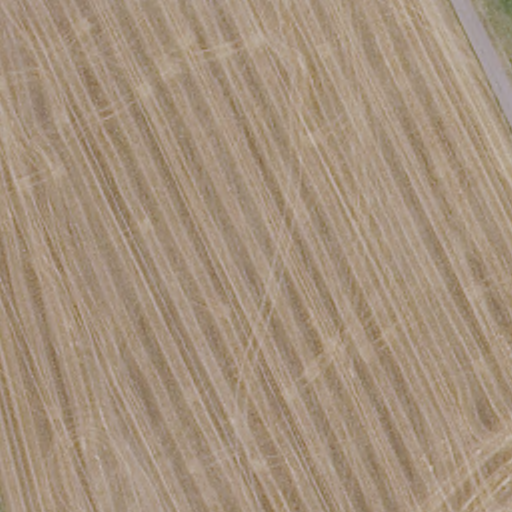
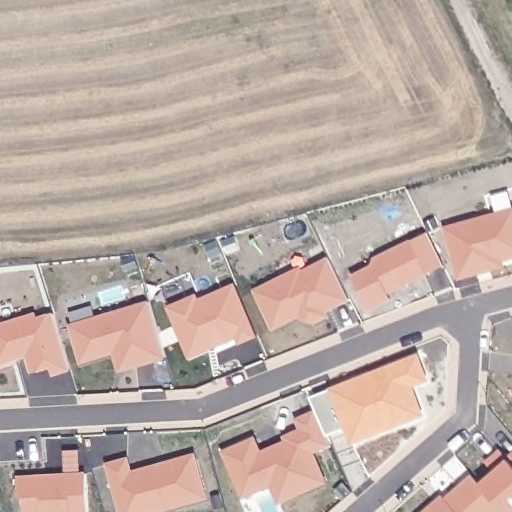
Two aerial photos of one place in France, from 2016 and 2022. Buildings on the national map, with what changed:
new [(445,227),(512,209),(512,260),(505,262),(506,266),(458,280),(445,227)]
new [(370,310),(352,275),(372,265),(375,257),(411,240),(413,240),(429,233),(445,264),(427,273),(428,276),(390,294),(392,301),(370,310)]
new [(327,311),(330,316),(311,324),(300,318),(273,330),(253,290),(301,266),(303,270),(330,256),(351,299),(327,311)]
new [(167,306),(197,294),(200,299),(236,283),(259,337),(240,344),(237,339),(190,359),(167,306)]
new [(120,372),(114,355),(80,364),(68,325),(149,301),(166,358),(120,372)]
new [(51,367),(33,372),(27,355),(0,364),(0,325),(36,315),(38,319),(55,314),(70,369),(53,374),(51,367)]
new [(419,354),(429,379),(414,386),(425,414),(353,443),(346,427),(326,435),(315,411),(310,398),(419,354)]
new [(222,452),(256,436),(262,451),(285,441),(283,436),(300,429),(295,418),(317,410),(333,445),(316,453),(328,483),(278,505),(270,487),(242,498),(222,452)]
new [(512,455),(512,512),(507,512),(504,508),(482,484),(498,471),(488,462),(502,450),(509,457),(512,455)]
new [(165,512),(120,512),(105,463),(129,456),(132,470),(197,452),(210,499),(165,512)]
new [(19,497),(17,476),(86,472),(89,512),(25,512),(25,497),(19,497)]
new [(445,498),(473,475),(482,484),(504,508),(499,512),(424,512),(442,496),(445,498)]

